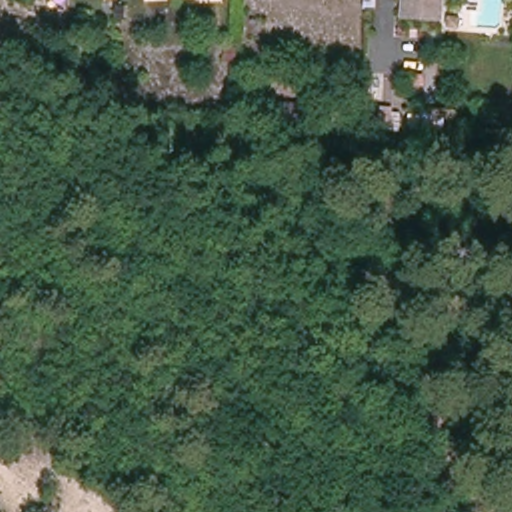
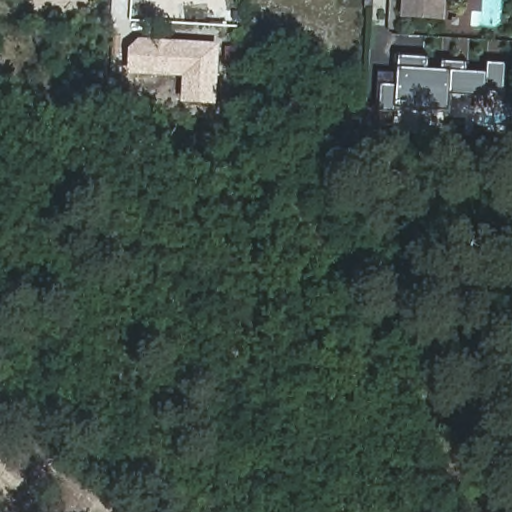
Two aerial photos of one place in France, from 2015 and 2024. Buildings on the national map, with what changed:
new [(129,47),(139,38),(219,44),(216,104),(181,103),(182,76),(129,73),(129,47)]
new [(398,56),(428,58),(428,69),(442,70),(442,60),(466,62),(466,70),(486,72),(487,63),(505,64),(502,91),(487,91),(486,96),(450,93),(448,111),(397,108),(381,107),(382,84),(396,85),(398,67),(398,56)]

